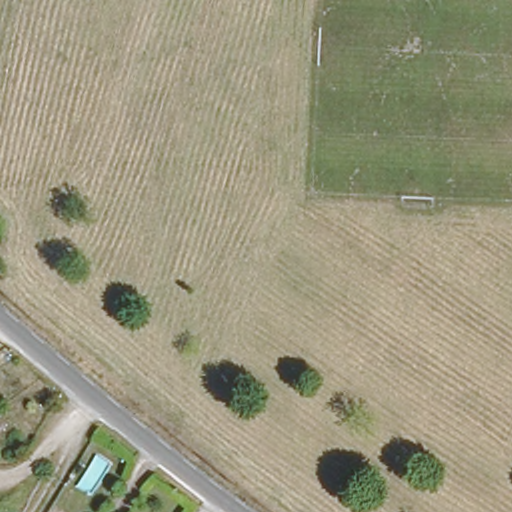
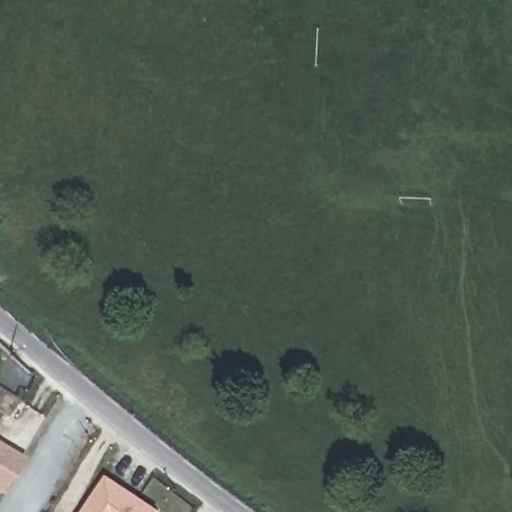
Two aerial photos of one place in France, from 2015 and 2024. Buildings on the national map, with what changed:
new [(0,494),(0,443),(24,457),(1,495),(0,494)]
new [(155,508),(153,512),(81,512),(103,476),(155,508)]

